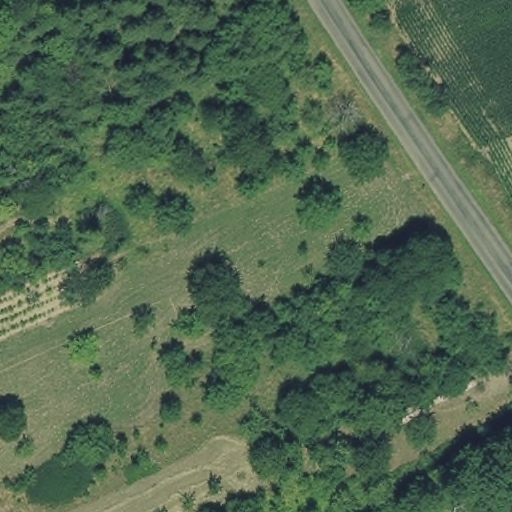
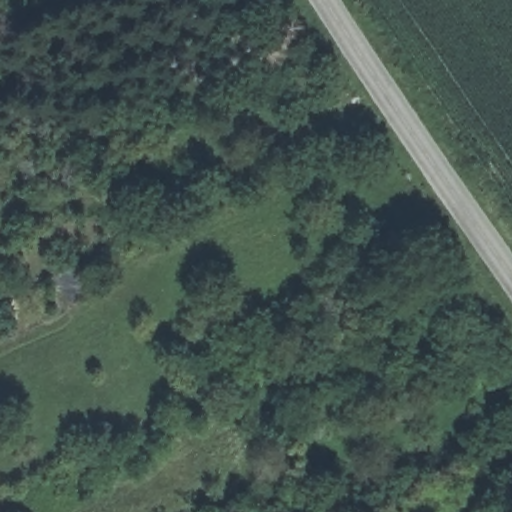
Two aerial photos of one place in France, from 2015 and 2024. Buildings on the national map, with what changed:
[]

